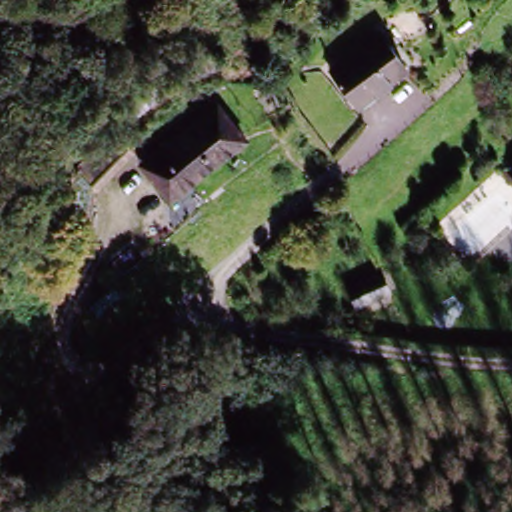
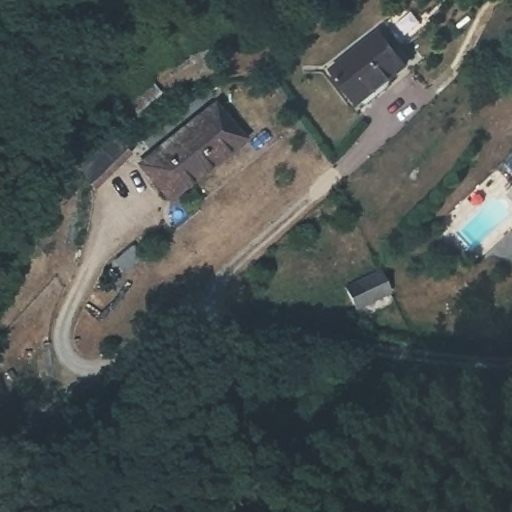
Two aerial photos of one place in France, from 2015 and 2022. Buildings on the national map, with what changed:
unchanged [(324,72),(375,32),(405,67),(356,110),(324,72)]
unchanged [(136,165),(214,104),(244,141),(169,200),(136,165)]
unchanged [(512,171),(512,212),(509,215),(489,190),(512,171)]
unchanged [(378,276),(385,291),(361,308),(351,292),(378,276)]

